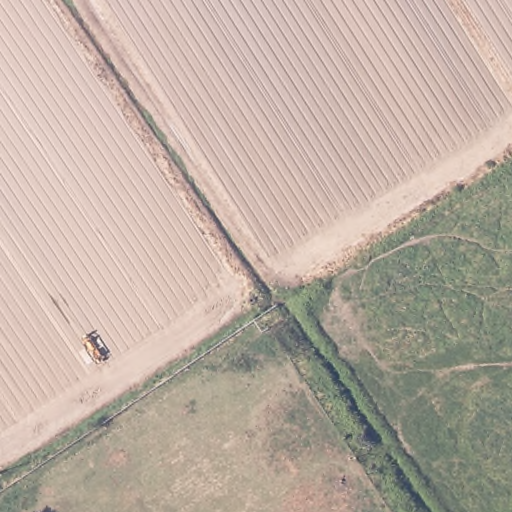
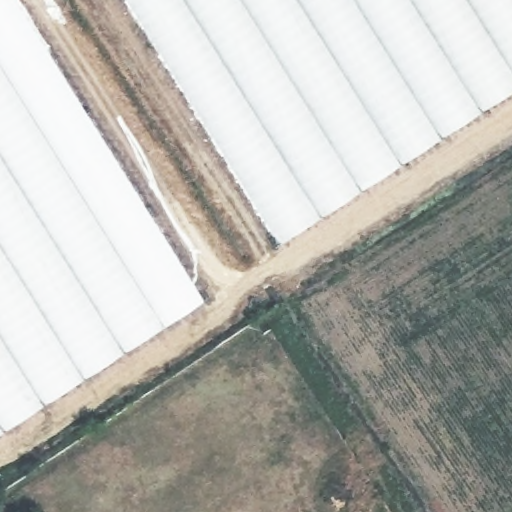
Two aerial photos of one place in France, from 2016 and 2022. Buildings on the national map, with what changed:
new [(0,434),(0,0),(16,0),(202,300),(0,434)]
new [(131,0),(512,0),(512,90),(282,240),(131,0)]

